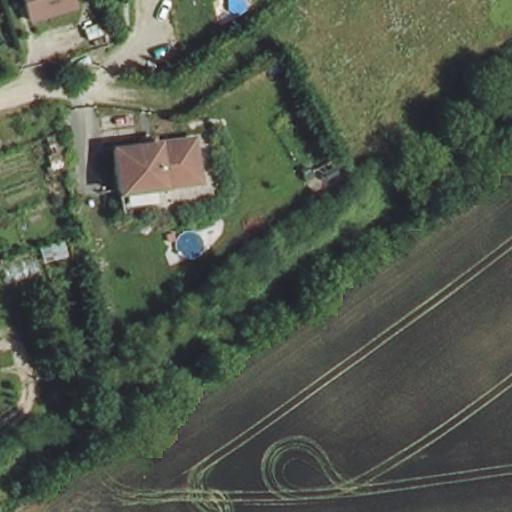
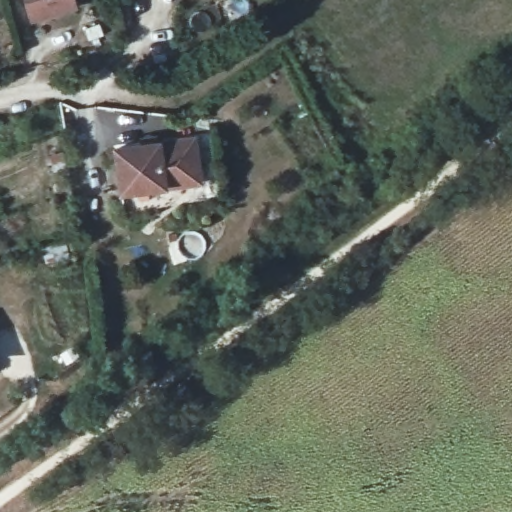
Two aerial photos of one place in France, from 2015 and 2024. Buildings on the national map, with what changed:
unchanged [(28,20),(22,0),(79,0),(80,4),(28,20)]
unchanged [(196,138),(202,181),(123,191),(118,148),(196,138)]

